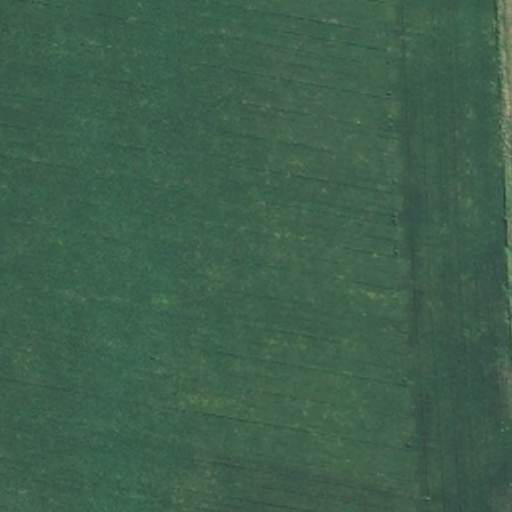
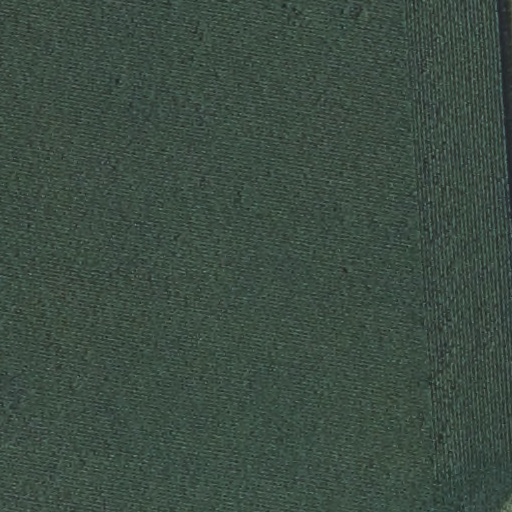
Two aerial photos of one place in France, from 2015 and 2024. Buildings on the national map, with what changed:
[]

